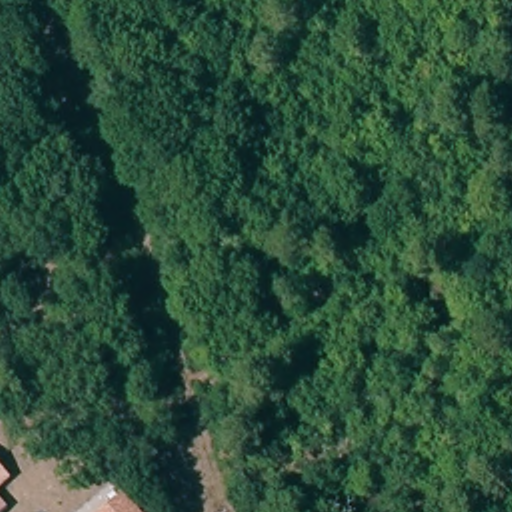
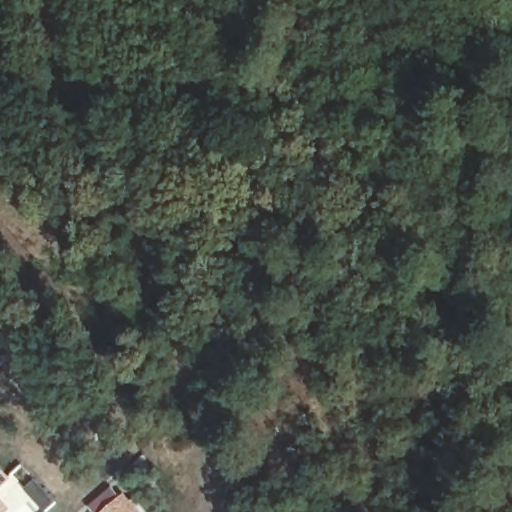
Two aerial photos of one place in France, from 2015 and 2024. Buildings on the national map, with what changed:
unchanged [(0,491),(0,468),(11,480),(0,491)]
unchanged [(139,512),(101,512),(123,494),(139,512)]
unchanged [(6,512),(0,512),(0,499),(9,510),(6,512)]

